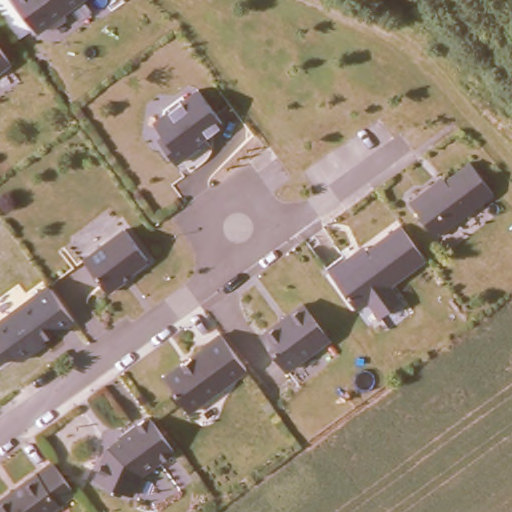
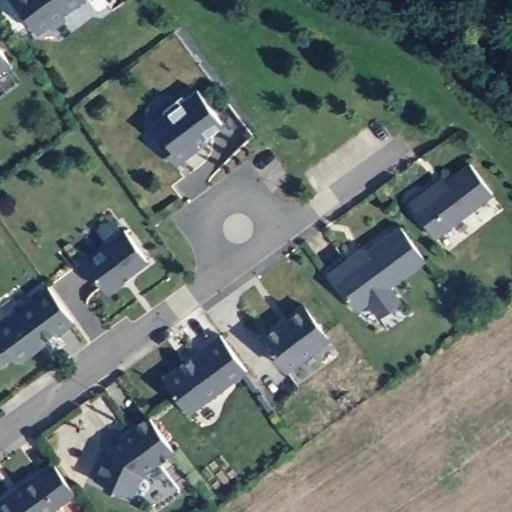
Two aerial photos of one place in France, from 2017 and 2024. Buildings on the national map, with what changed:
unchanged [(39,33),(15,0),(80,0),(39,33)]
unchanged [(0,53),(9,66),(0,71),(0,53)]
unchanged [(225,124),(206,136),(208,141),(176,163),(156,141),(166,134),(154,120),(201,84),(225,124)]
unchanged [(497,195),(434,237),(413,204),(474,159),(497,195)]
unchanged [(429,259),(395,289),(402,300),(376,319),(366,304),(358,309),(331,269),(374,236),(377,242),(403,224),(429,259)]
unchanged [(151,260),(110,293),(86,259),(130,226),(151,260)]
unchanged [(23,364),(0,336),(0,324),(48,288),(79,322),(23,364)]
unchanged [(289,371),(258,336),(304,302),(331,339),(289,371)]
unchanged [(161,378),(223,333),(250,373),(188,420),(161,378)]
unchanged [(143,478),(136,498),(94,480),(129,418),(164,428),(175,450),(143,478)]
unchanged [(56,512),(0,512),(0,502),(39,471),(63,507),(56,512)]

